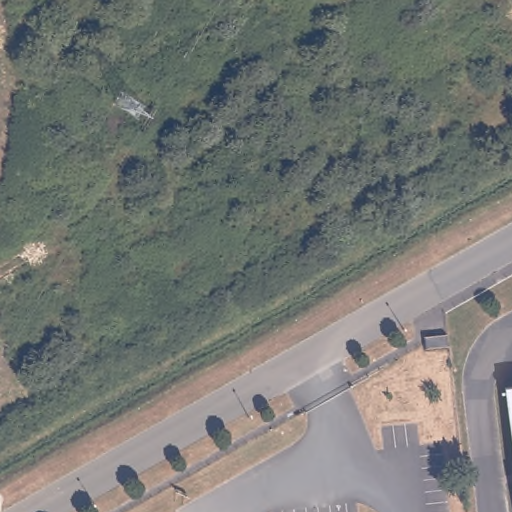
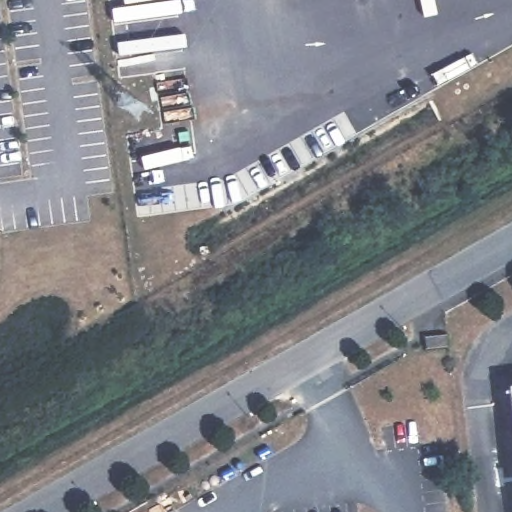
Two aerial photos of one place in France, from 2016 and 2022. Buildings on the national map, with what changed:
unchanged [(439,336),(440,348),(423,351),(421,339),(439,336)]
unchanged [(510,391),(512,391),(512,409),(510,391)]

